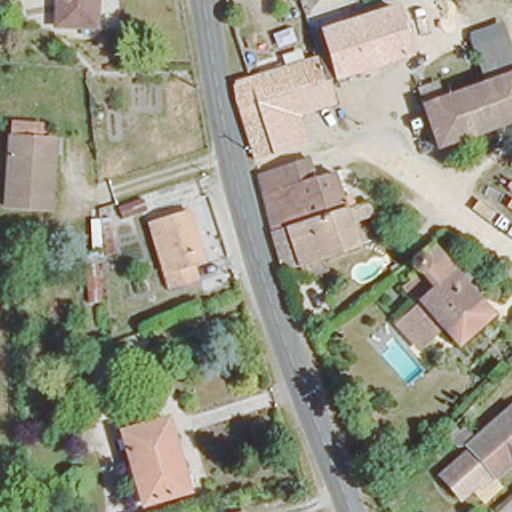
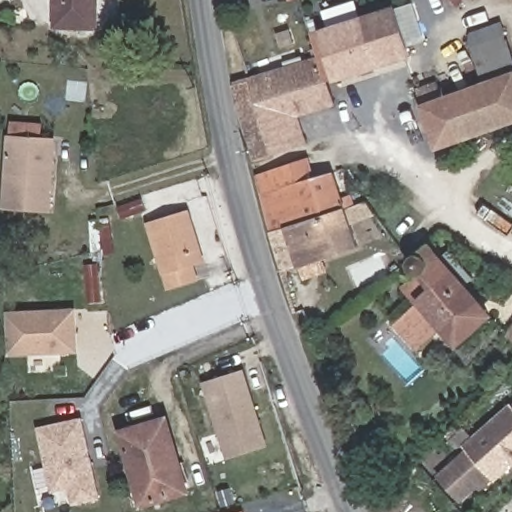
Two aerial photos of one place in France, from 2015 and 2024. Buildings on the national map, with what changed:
unchanged [(96,23),(75,23),(59,22),(59,0),(97,0),(97,11),(96,23)]
unchanged [(276,143),(258,148),(238,74),(252,69),(322,44),(316,23),(352,12),(358,32),(367,59),(330,71),(336,90),(314,100),(307,77),(260,92),(267,114),(295,104),(306,136),(276,143)]
unchanged [(367,59),(358,32),(402,17),(407,34),(410,45),(367,59)]
unchanged [(486,81),(475,45),(510,34),(512,42),(512,72),(486,81)]
unchanged [(441,144),(428,102),(427,97),(424,89),(442,83),(446,95),(486,81),(512,72),(512,119),(441,144)]
unchanged [(50,212),(7,209),(12,138),(12,120),(46,123),(45,140),(53,141),(50,212)]
unchanged [(325,169),(322,159),(332,155),(337,164),(342,179),(303,190),(300,178),(291,181),(283,162),(311,151),(315,160),(319,171),(325,169)]
unchanged [(266,169),(283,162),(291,181),(300,178),(303,190),(342,179),(349,202),(282,221),(266,169)]
unchanged [(349,202),(360,237),(318,255),(286,268),(273,224),(282,221),(349,202)]
unchanged [(188,266),(191,278),(166,284),(151,225),(149,216),(186,206),(187,211),(196,249),(200,262),(188,266)]
unchanged [(436,292),(425,278),(415,274),(412,266),(412,265),(415,261),(420,257),(432,246),(447,264),(455,258),(473,279),(466,286),(492,318),(460,347),(446,331),(422,350),(401,323),(402,322),(436,292)]
new [(7,351),(6,310),(75,309),(75,350),(7,351)]
new [(241,370),(266,447),(227,458),(203,382),(241,370)]
unchanged [(472,453),(468,450),(512,408),(512,467),(496,482),(491,477),(472,495),(462,504),(441,482),(457,467),(472,453)]
unchanged [(125,426),(125,425),(169,413),(190,482),(144,495),(125,426)]
new [(82,418),(98,499),(71,504),(68,492),(50,494),(34,426),(82,418)]
unchanged [(237,512),(214,512),(235,506),(237,512)]

